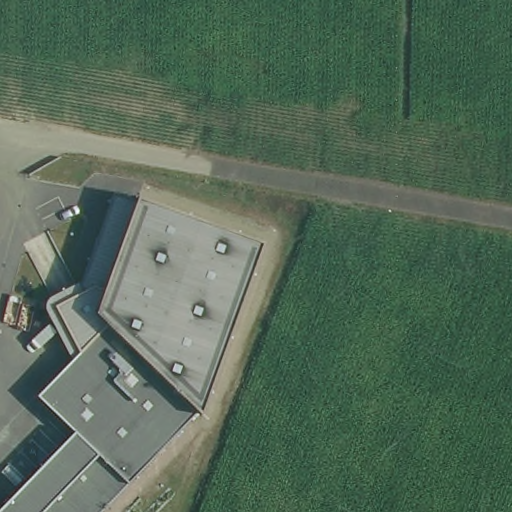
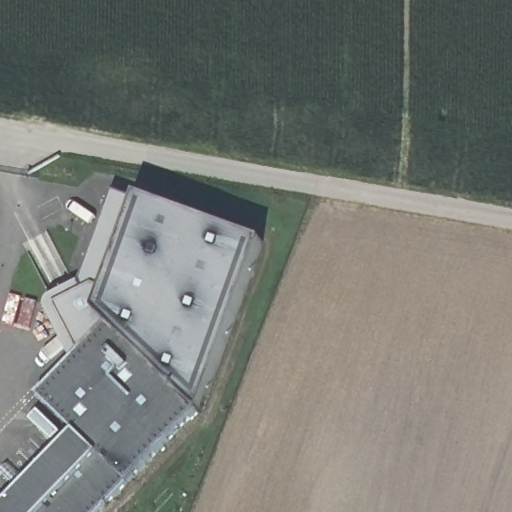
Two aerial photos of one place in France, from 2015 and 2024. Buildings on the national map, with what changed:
unchanged [(56,306),(85,291),(81,284),(114,192),(137,200),(139,196),(267,242),(204,416),(200,413),(108,325),(80,353),(56,306)]
unchanged [(75,432),(38,397),(80,353),(108,325),(200,413),(107,510),(105,512),(0,512),(0,511),(22,488),(75,432)]

